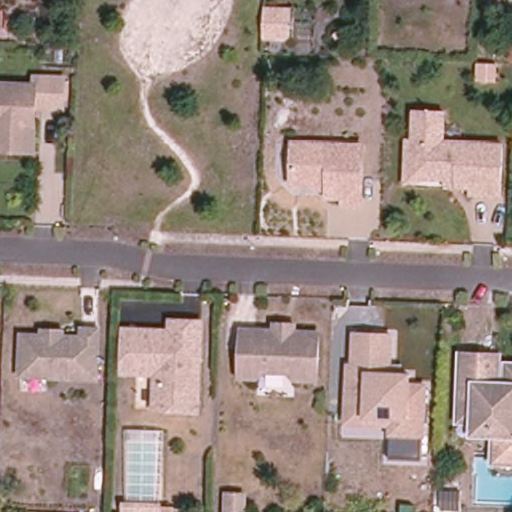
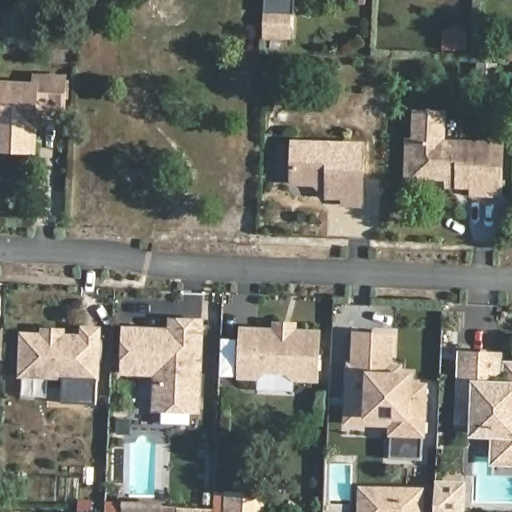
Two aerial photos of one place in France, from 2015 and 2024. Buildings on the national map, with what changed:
new [(265,16),(265,11),(291,12),(290,17),(290,37),(290,42),(264,41),(265,36),(265,16)]
unchanged [(37,80),(65,80),(64,110),(36,110),(35,120),(34,154),(0,152),(0,87),(36,89),(37,80)]
unchanged [(448,177),(428,177),(407,184),(408,140),(415,139),(416,111),(446,112),(445,140),(505,144),(503,195),(474,195),(474,186),(460,186),(448,185),(448,177)]
unchanged [(296,141),(365,145),(363,204),(346,202),(346,195),(330,195),(330,182),(295,180),(296,141)]
unchanged [(316,380),(293,378),(287,370),(265,370),(257,376),(239,376),(241,328),(273,330),(273,322),(295,323),(295,331),(319,332),(316,380)]
unchanged [(122,373),(125,330),(170,332),(171,323),(182,323),(201,325),(198,412),(155,411),(155,382),(156,375),(122,373)]
unchanged [(85,331),(104,333),(100,383),(22,378),(25,337),(45,338),(45,332),(67,333),(67,339),(85,340),(85,331)]
unchanged [(410,394),(425,395),(422,444),(390,442),(391,425),(366,424),(366,420),(346,418),(349,373),(353,373),(355,342),(391,345),(390,376),(390,382),(410,384),(410,394)]
unchanged [(503,358),(501,387),(512,388),(512,464),(498,463),(500,435),(480,421),(465,420),(465,398),(468,356),(503,358)]
new [(435,480),(466,480),(466,512),(434,512),(435,491),(435,480)]
new [(426,486),(425,491),(435,491),(434,512),(358,512),(358,485),(426,486)]
unchanged [(220,512),(221,496),(239,496),(238,512),(220,512)]
unchanged [(162,507),(162,512),(122,512),(122,506),(162,507)]

